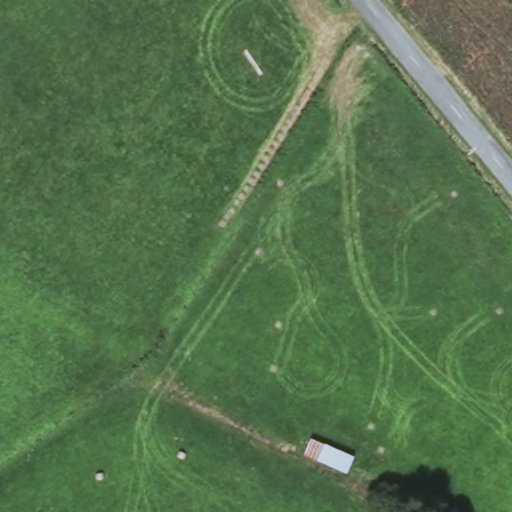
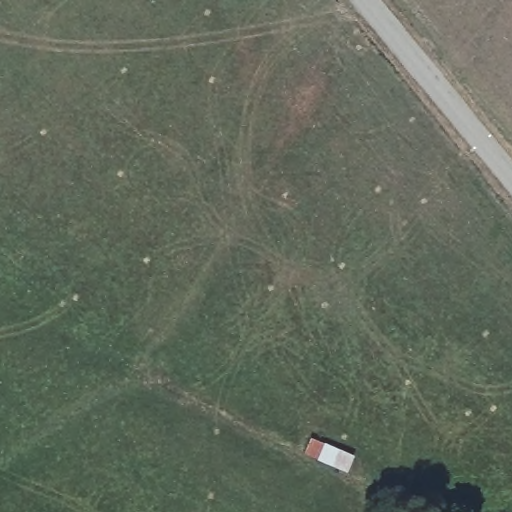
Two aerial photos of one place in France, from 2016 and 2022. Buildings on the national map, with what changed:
unchanged [(359,453),(349,472),(305,455),(313,432),(359,453)]

